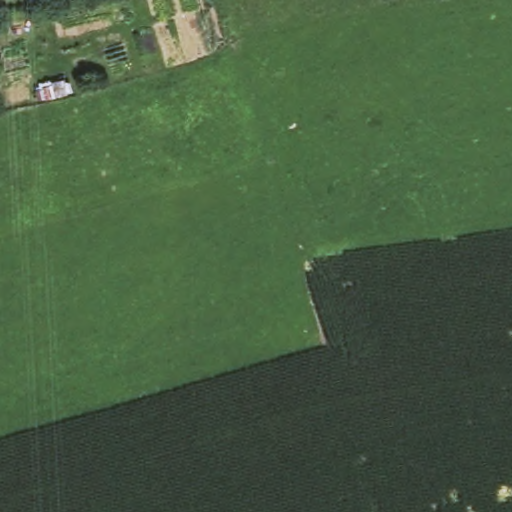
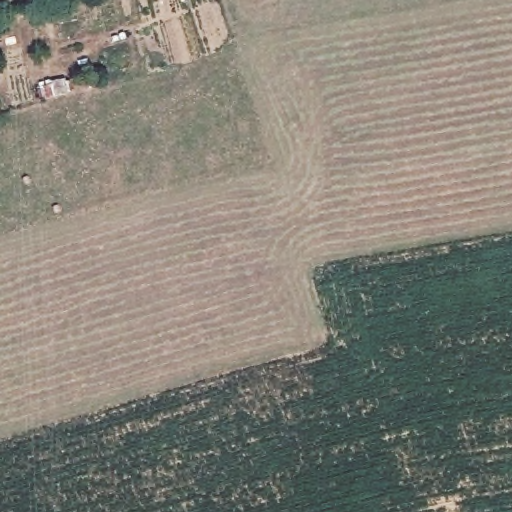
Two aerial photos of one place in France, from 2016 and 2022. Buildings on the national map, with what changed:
unchanged [(67,92),(40,99),(36,83),(65,76),(67,92)]

